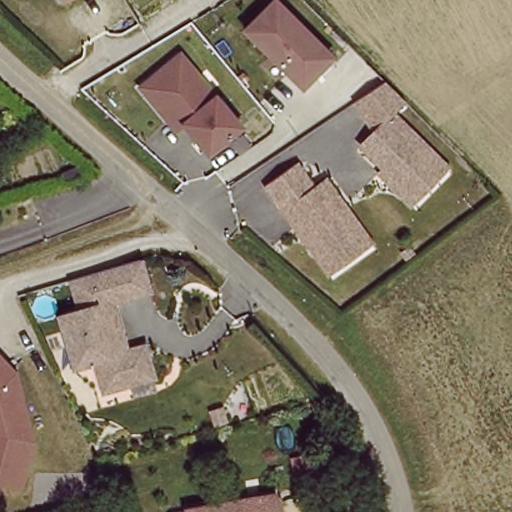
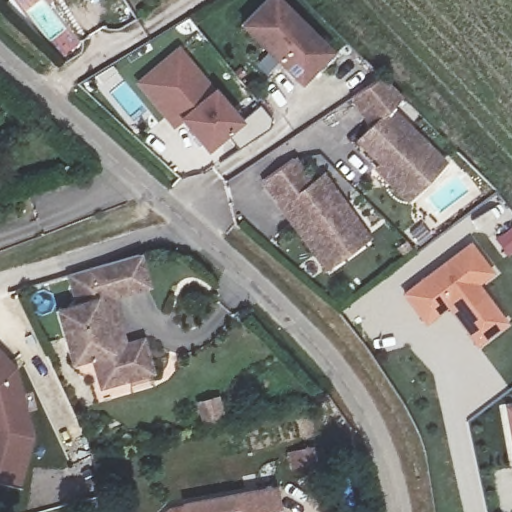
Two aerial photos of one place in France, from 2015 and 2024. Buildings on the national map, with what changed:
unchanged [(318,62),(297,82),(241,22),(265,0),(278,0),(304,27),(328,52),(318,62)]
unchanged [(160,86),(187,119),(185,121),(177,127),(142,84),(183,51),(192,61),(160,86)]
unchanged [(209,152),(185,121),(187,119),(160,86),(192,61),(242,126),(209,152)]
unchanged [(397,189),(382,174),(378,169),(383,164),(361,140),(376,126),(357,97),(387,77),(407,98),(395,110),(447,166),(423,188),(408,201),(397,189)]
unchanged [(317,254),(305,236),(285,205),(267,179),(297,158),(315,183),(327,175),(370,238),(343,256),(327,267),(317,254)]
new [(469,241),(493,273),(478,286),(507,323),(475,347),(447,309),(425,325),(400,293),(469,241)]
unchanged [(147,341),(157,372),(107,387),(98,357),(77,363),(62,312),(83,306),(73,275),(142,254),(152,286),(115,297),(125,331),(129,346),(147,341)]
unchanged [(33,437),(22,486),(0,481),(0,349),(17,368),(33,437)]
new [(512,407),(512,444),(507,408),(512,407)]
unchanged [(273,492),(276,512),(182,512),(182,509),(273,492)]

